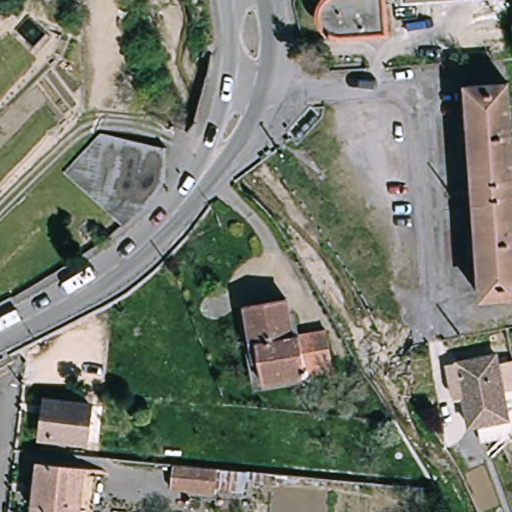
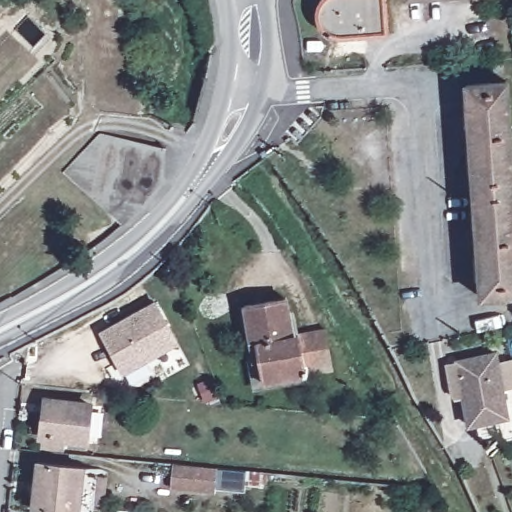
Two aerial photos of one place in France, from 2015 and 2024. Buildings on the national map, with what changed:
unchanged [(335,33),(331,30),(327,26),(325,20),(323,14),(324,8),(325,3),(327,0),(390,0),(392,32),(342,34),(335,33)]
unchanged [(512,129),(512,295),(484,298),(467,84),(508,81),(512,129)]
unchanged [(67,174),(72,165),(86,146),(97,129),(160,154),(162,188),(150,203),(142,213),(138,217),(123,232),(121,234),(67,174)]
unchanged [(287,296),(294,333),(328,327),(336,368),(265,381),(261,359),(256,360),(246,303),(287,296)]
new [(156,302),(180,344),(122,377),(99,333),(156,302)]
unchanged [(510,416),(472,423),(461,357),(498,351),(510,416)]
new [(212,377),(220,396),(206,401),(198,382),(212,377)]
unchanged [(46,401),(92,405),(88,441),(67,438),(65,452),(40,450),(46,401)]
unchanged [(84,494),(97,495),(95,512),(73,512),(35,509),(40,458),(87,462),(84,494)]
unchanged [(207,490),(167,487),(170,464),(210,467),(207,490)]

